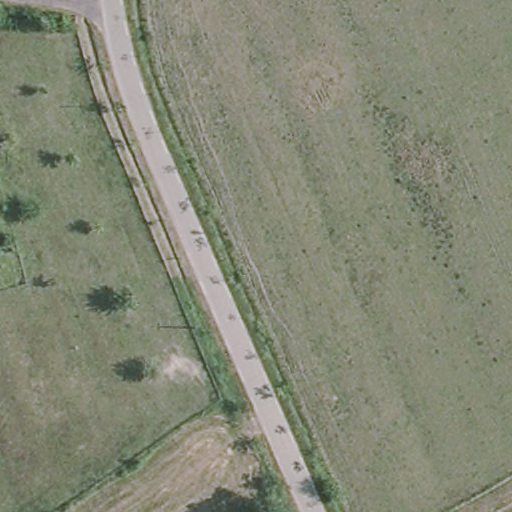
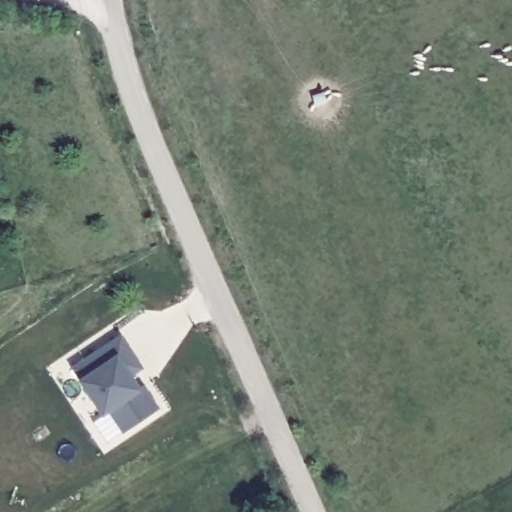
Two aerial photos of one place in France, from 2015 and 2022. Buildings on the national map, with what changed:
new [(144,368),(134,377),(140,387),(143,384),(160,408),(122,433),(107,413),(102,416),(78,380),(70,367),(120,332),(144,368)]

